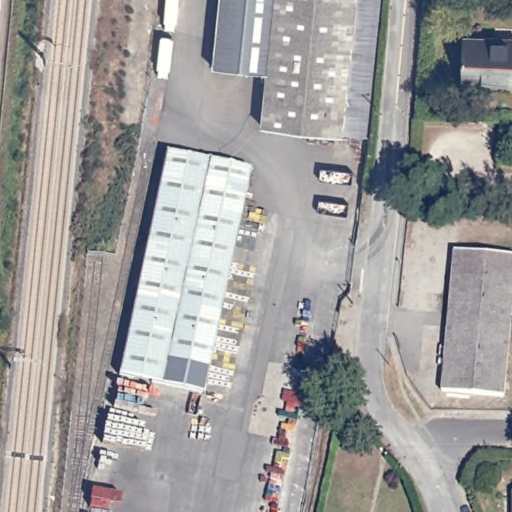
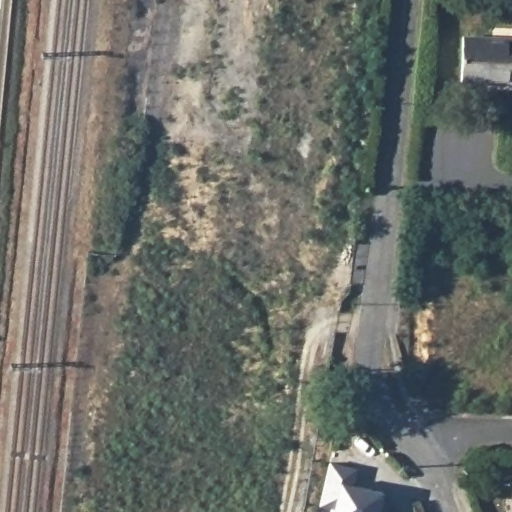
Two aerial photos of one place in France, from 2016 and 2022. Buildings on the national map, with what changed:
demolished [(263,126),(269,71),(214,65),(221,0),(357,0),(343,134),(263,126)]
unchanged [(463,38),(512,39),(512,83),(462,83),(463,38)]
demolished [(202,391),(118,373),(167,149),(250,168),(202,391)]
demolished [(456,250),(512,255),(512,297),(502,397),(441,390),(456,250)]

